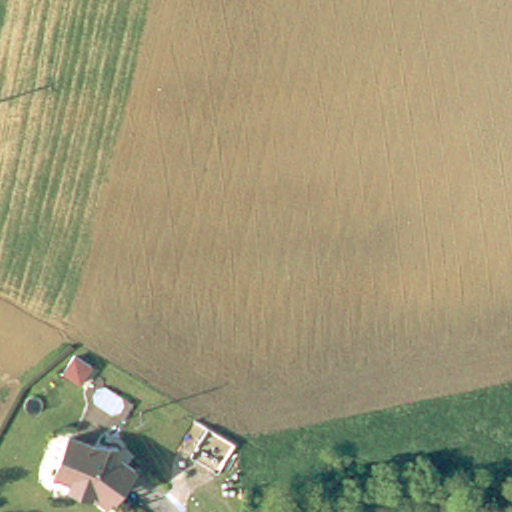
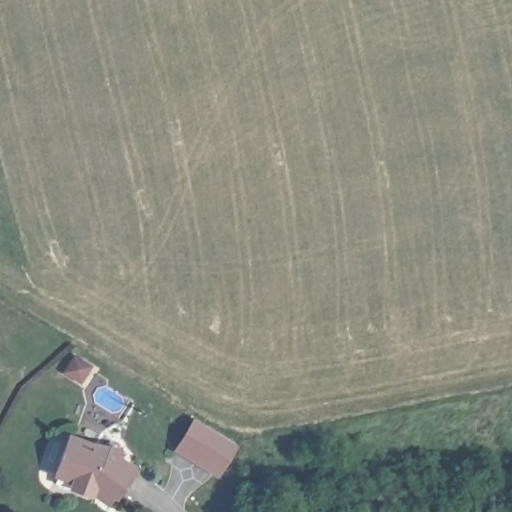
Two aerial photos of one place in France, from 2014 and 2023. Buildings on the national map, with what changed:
new [(238,445),(220,476),(174,449),(193,418),(238,445)]
unchanged [(79,476),(60,470),(75,432),(103,441),(124,444),(124,452),(140,465),(122,491),(118,489),(117,491),(115,492),(112,492),(110,491),(108,489),(107,487),(106,485),(106,483),(100,481),(95,491),(77,483),(79,476)]

